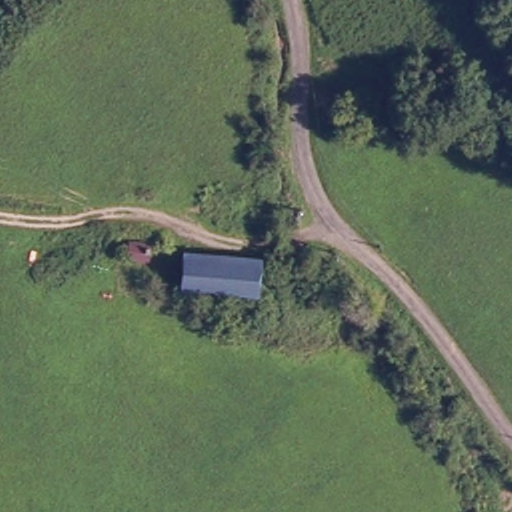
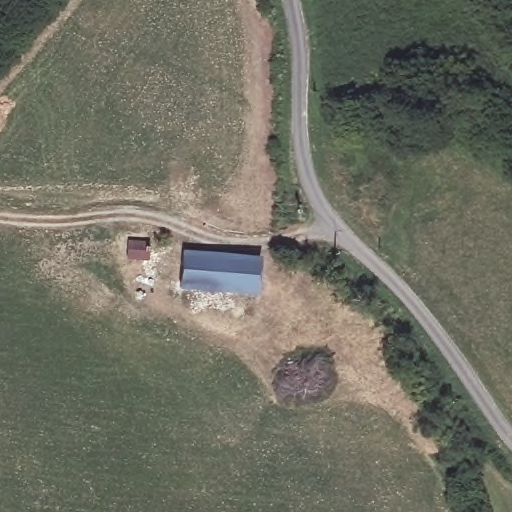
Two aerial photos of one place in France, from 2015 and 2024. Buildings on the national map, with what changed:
unchanged [(149,238),(147,256),(124,253),(127,235),(149,238)]
unchanged [(265,254),(266,258),(264,290),(241,289),(240,307),(186,303),(186,297),(177,297),(177,278),(187,278),(190,248),(265,254)]

